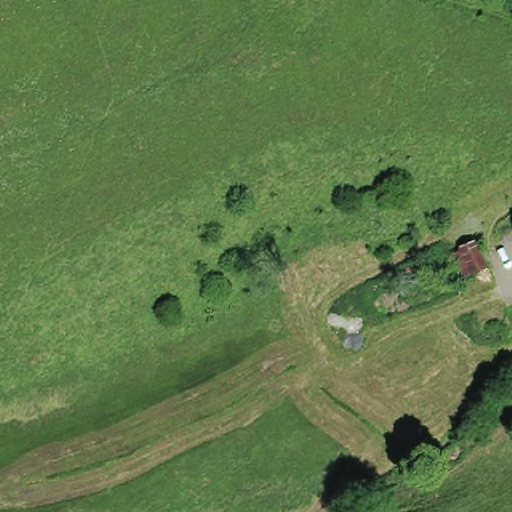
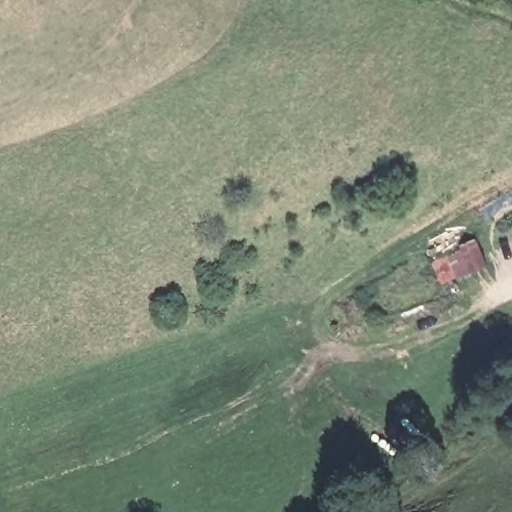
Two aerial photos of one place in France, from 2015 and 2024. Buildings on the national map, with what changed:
unchanged [(512,218),(512,219),(511,218),(512,218)]
unchanged [(440,249),(456,240),(455,237),(472,229),(483,260),(466,267),(451,272),(440,249)]

